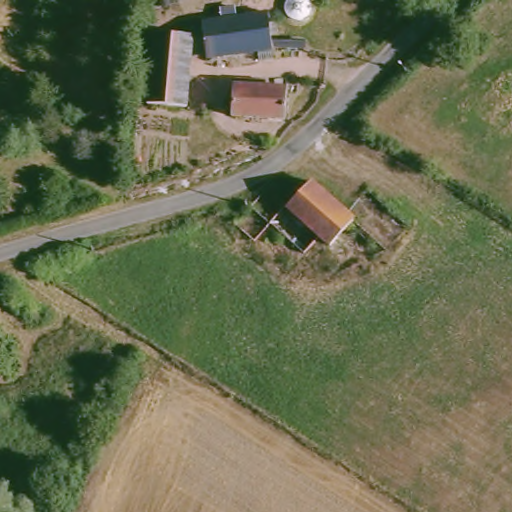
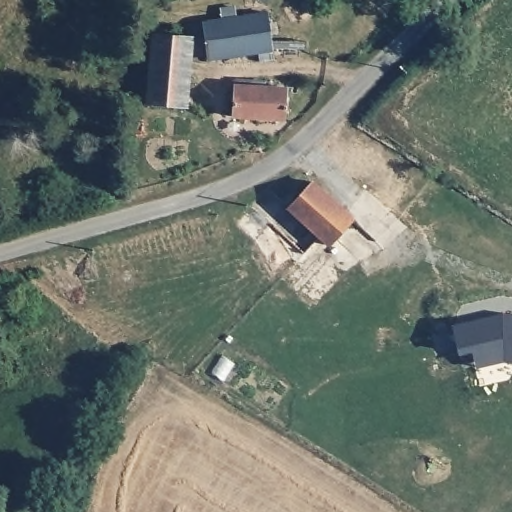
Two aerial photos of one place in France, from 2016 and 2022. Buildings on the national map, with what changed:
unchanged [(180,35),(181,24),(264,13),(265,15),(293,11),(294,21),(304,20),(305,36),(295,36),(296,45),(202,57),(201,53),(180,56),(177,107),(142,105),(147,33),(180,35)]
unchanged [(284,88),(281,120),(230,115),(232,84),(284,88)]
unchanged [(267,192),(291,213),(314,187),(357,225),(332,250),(322,241),(310,252),(275,224),(258,245),(237,230),(267,192)]
new [(460,354),(452,322),(502,313),(512,315),(512,362),(503,360),(477,367),(473,351),(460,354)]

